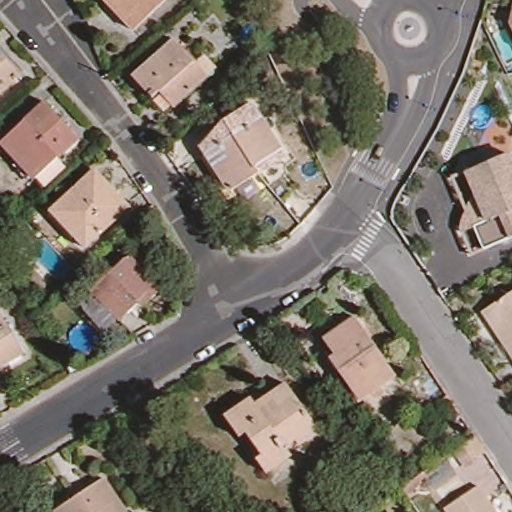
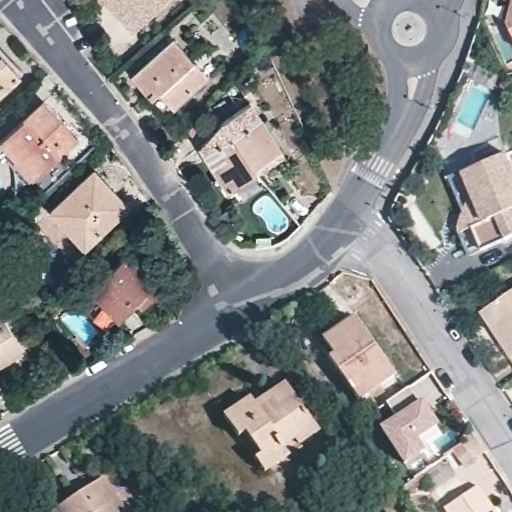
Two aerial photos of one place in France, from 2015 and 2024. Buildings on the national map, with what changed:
unchanged [(101,0),(167,0),(132,34),(117,17),(106,5),(101,0)]
unchanged [(512,5),(512,40),(504,24),(512,5)]
unchanged [(178,105),(162,88),(155,94),(137,75),(178,39),(211,75),(178,105)]
unchanged [(8,55),(25,75),(0,98),(0,56),(3,59),(8,55)]
new [(482,67),(499,75),(495,86),(477,79),(482,67)]
unchanged [(210,152),(233,190),(227,195),(199,147),(225,120),(257,101),(265,115),(210,152)]
unchanged [(62,157),(34,182),(1,147),(47,105),(75,135),(80,140),(62,157)]
unchanged [(285,149),(257,167),(260,172),(233,190),(210,152),(265,115),(285,149)]
unchanged [(482,251),(472,228),(487,222),(465,173),(507,155),(512,166),(512,237),(482,251)]
unchanged [(90,246),(57,210),(101,169),(135,206),(90,246)]
unchanged [(118,317),(92,290),(129,254),(161,286),(147,300),(142,305),(137,300),(118,317)]
unchanged [(488,310),(512,294),(512,349),(504,336),(500,329),(488,310)]
unchanged [(0,309),(2,308),(7,317),(27,353),(0,369),(0,309)]
unchanged [(345,327),(342,324),(355,315),(357,318),(360,317),(400,374),(363,398),(333,356),(338,353),(328,340),(345,327)]
unchanged [(266,453),(250,430),(243,435),(230,415),(257,396),(261,403),(290,382),(323,429),(303,443),(305,447),(270,472),(260,458),(266,453)]
new [(397,417),(387,402),(410,387),(420,403),(422,401),(438,425),(417,439),(425,450),(406,463),(382,428),(397,417)]
unchanged [(492,452),(469,467),(459,452),(482,437),(492,452)]
unchanged [(107,476),(132,512),(59,512),(58,510),(107,476)]
unchanged [(451,512),(445,504),(478,481),(490,498),(499,512),(451,512)]
unchanged [(412,489),(404,495),(400,488),(408,483),(412,489)]

